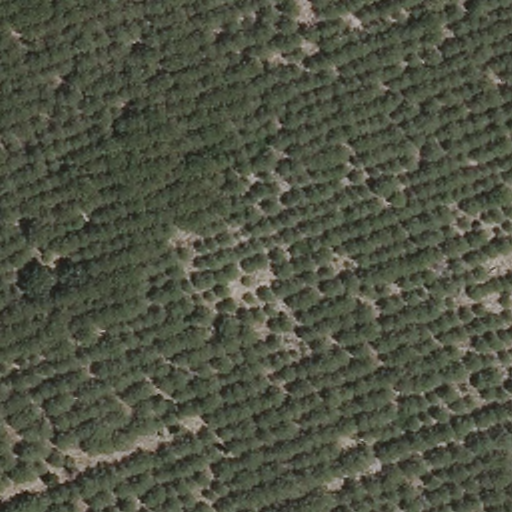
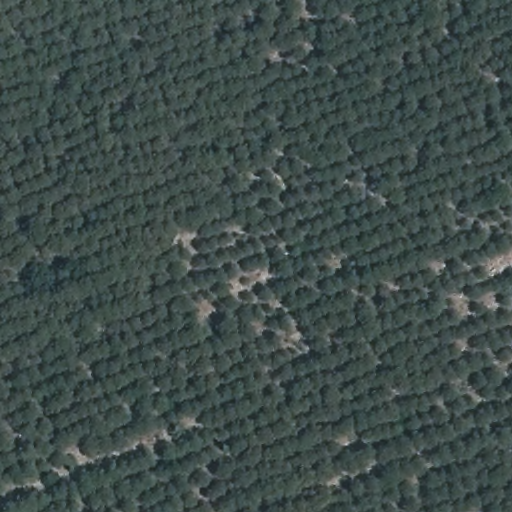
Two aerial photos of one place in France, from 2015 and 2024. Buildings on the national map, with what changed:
[]

